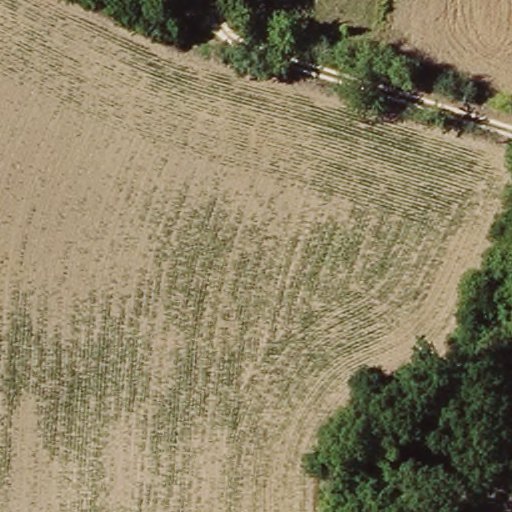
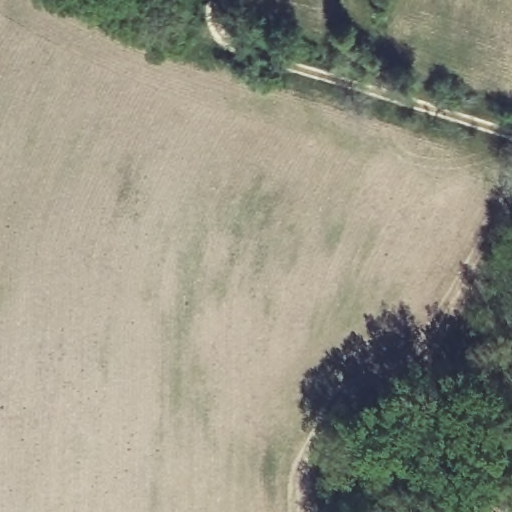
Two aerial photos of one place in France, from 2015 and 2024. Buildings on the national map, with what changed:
[]

